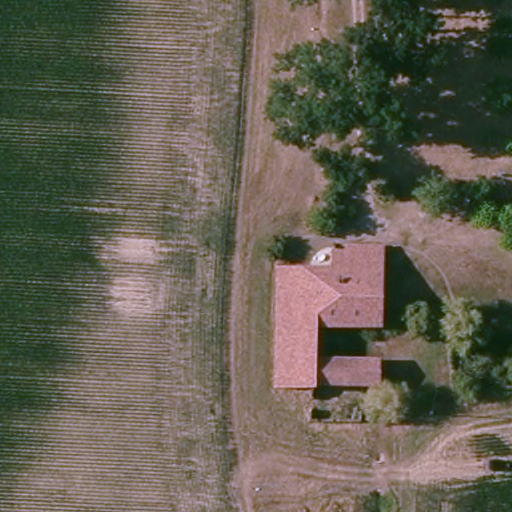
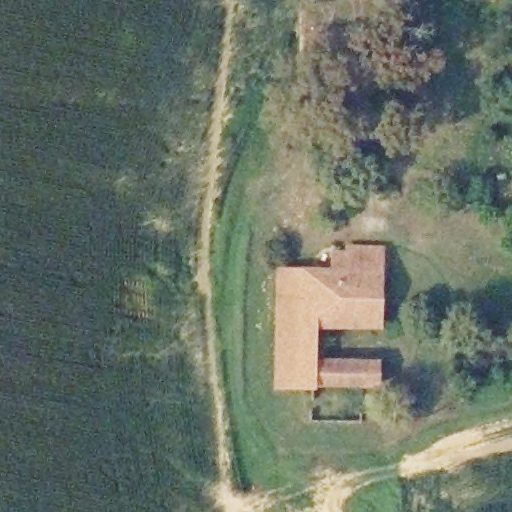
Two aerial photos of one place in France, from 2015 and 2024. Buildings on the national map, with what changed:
unchanged [(476,204),(477,220),(456,221),(456,205),(476,204)]
unchanged [(329,241),(337,241),(345,240),(379,238),(379,313),(318,314),(317,350),(380,350),(379,377),(308,382),(279,383),(279,261),(330,262),(329,241)]

